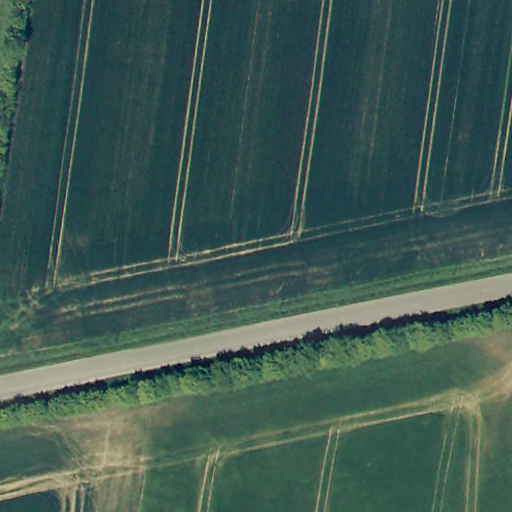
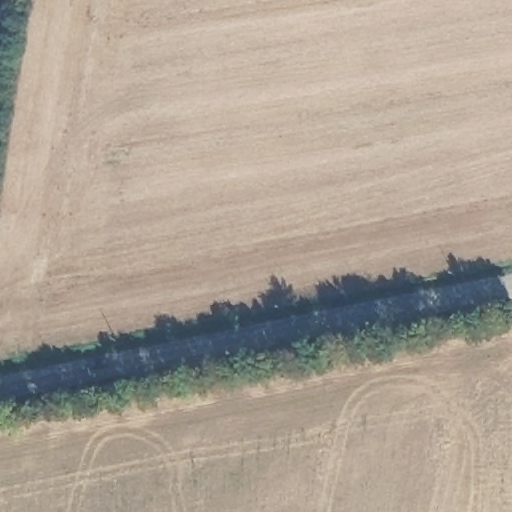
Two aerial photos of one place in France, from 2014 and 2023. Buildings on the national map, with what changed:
[]

